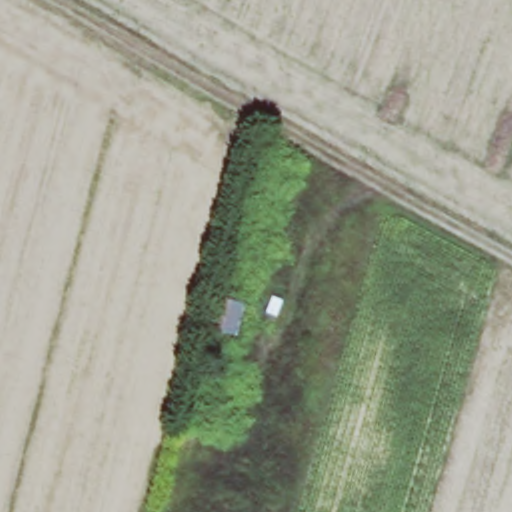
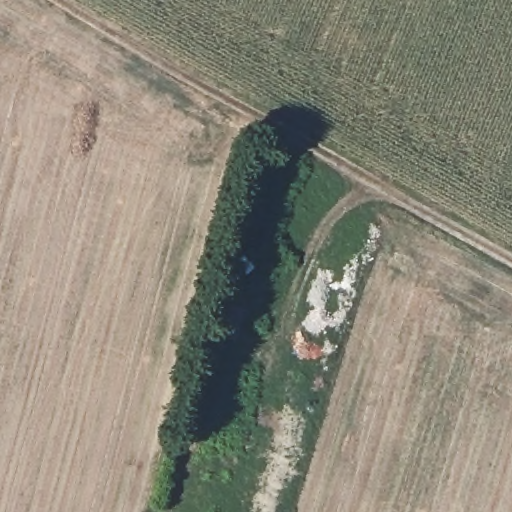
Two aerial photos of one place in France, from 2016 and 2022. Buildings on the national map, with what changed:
unchanged [(238,380),(220,424),(202,418),(214,373),(238,380)]

